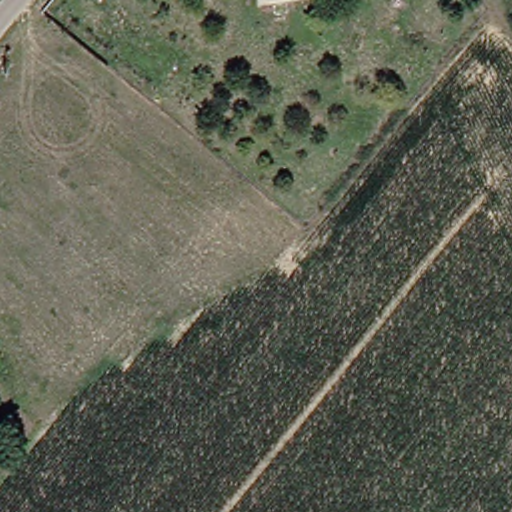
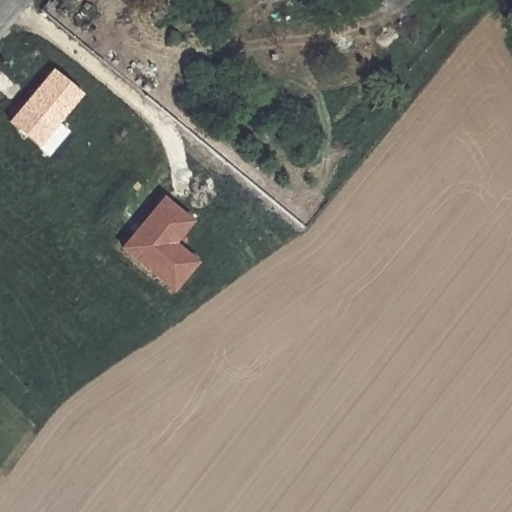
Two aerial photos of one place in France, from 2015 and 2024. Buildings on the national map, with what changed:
new [(8,122),(51,70),(83,94),(39,147),(8,122)]
new [(120,247),(163,196),(194,222),(176,242),(200,262),(175,293),(120,247)]

